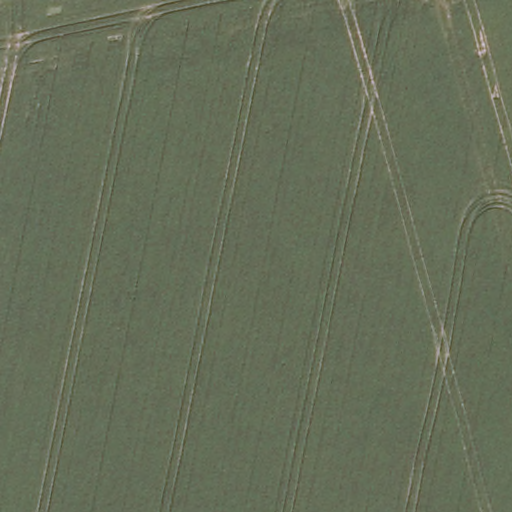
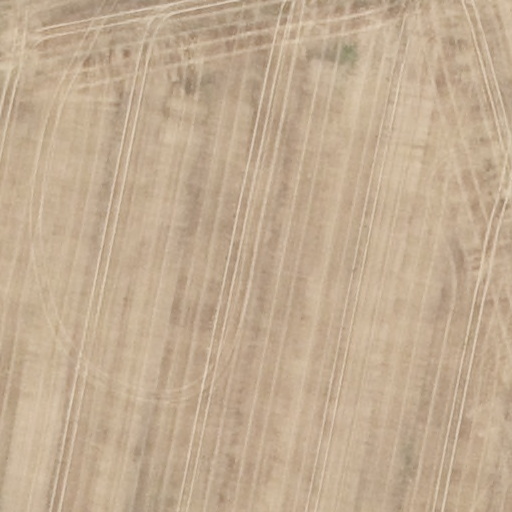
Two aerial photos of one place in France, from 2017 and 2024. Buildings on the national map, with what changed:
[]

